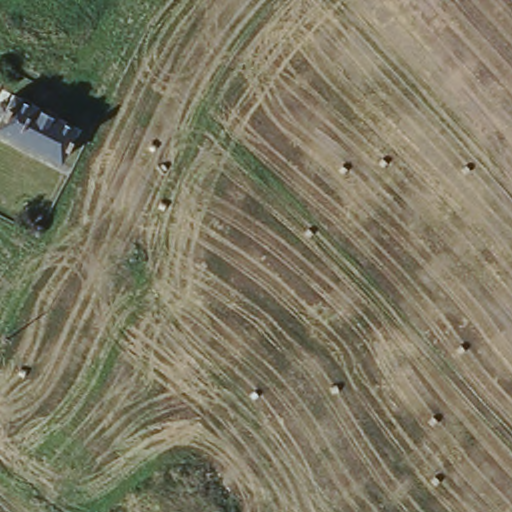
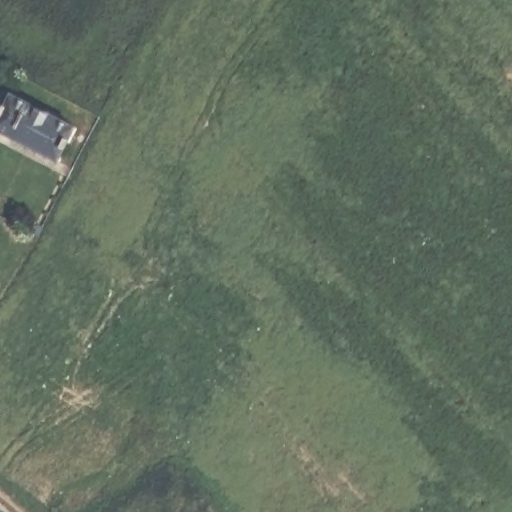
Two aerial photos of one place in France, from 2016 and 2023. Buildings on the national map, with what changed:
unchanged [(5,116),(0,114),(6,102),(12,105),(19,94),(82,129),(65,163),(0,128),(0,125),(5,116)]
unchanged [(30,221),(41,227),(35,240),(24,232),(30,221)]

